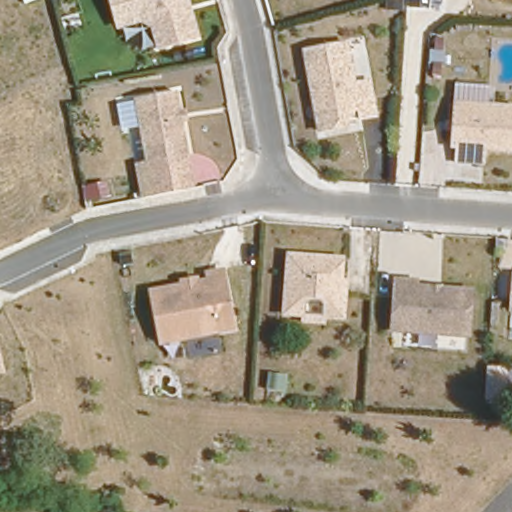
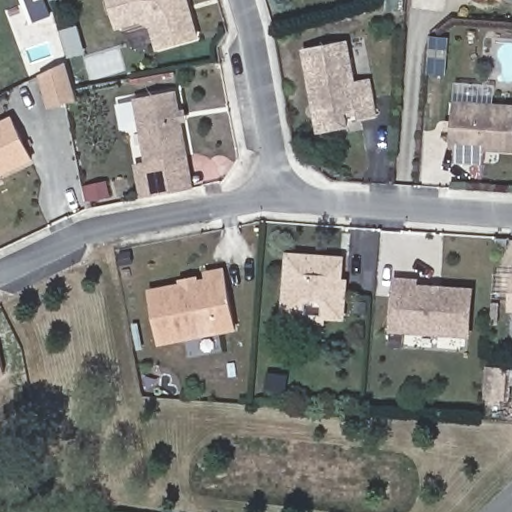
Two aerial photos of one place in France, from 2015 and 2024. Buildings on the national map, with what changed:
unchanged [(191,32),(153,42),(148,22),(137,15),(113,21),(107,0),(183,0),(191,32)]
new [(411,7),(412,0),(445,0),(443,10),(411,7)]
unchanged [(373,115),(357,118),(355,109),(342,110),(344,125),(316,130),(301,50),(344,43),(352,84),(367,81),(373,115)]
new [(61,63),(74,107),(61,107),(46,111),(36,75),(61,63)]
unchanged [(181,186),(140,191),(136,156),(144,155),(137,92),(178,88),(185,152),(189,185),(181,186)]
unchanged [(511,149),(481,146),(479,161),(454,160),(455,145),(451,145),(454,101),(512,105),(512,142),(511,149)]
new [(31,160),(0,175),(0,125),(11,120),(31,160)]
unchanged [(303,321),(304,315),(284,314),(288,256),(342,260),(341,282),(345,282),(345,293),(343,317),(323,316),(323,322),(303,321)]
unchanged [(419,276),(419,280),(473,283),(468,340),(384,333),(391,275),(419,276)]
unchanged [(235,323),(160,337),(151,288),(169,285),(170,288),(226,277),(235,323)]
unchanged [(509,312),(512,283),(512,312),(509,312)]
unchanged [(0,375),(0,345),(6,373),(0,375)]
new [(506,359),(512,359),(512,390),(503,389),(506,359)]
unchanged [(0,512),(0,507),(43,506),(43,512),(0,512)]

